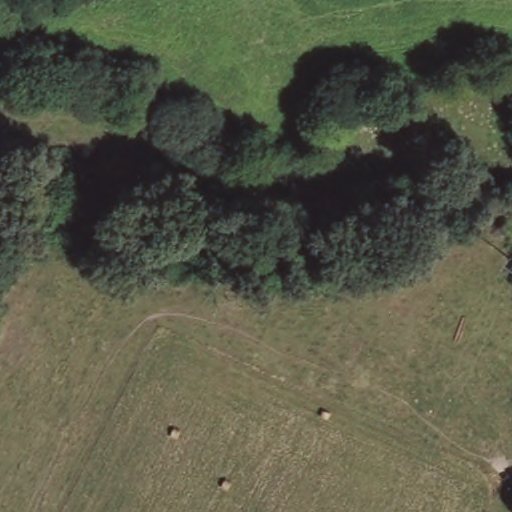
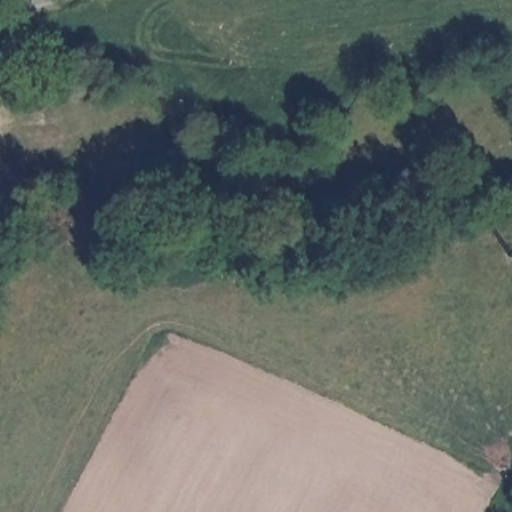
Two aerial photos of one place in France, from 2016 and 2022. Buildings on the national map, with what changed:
[]

